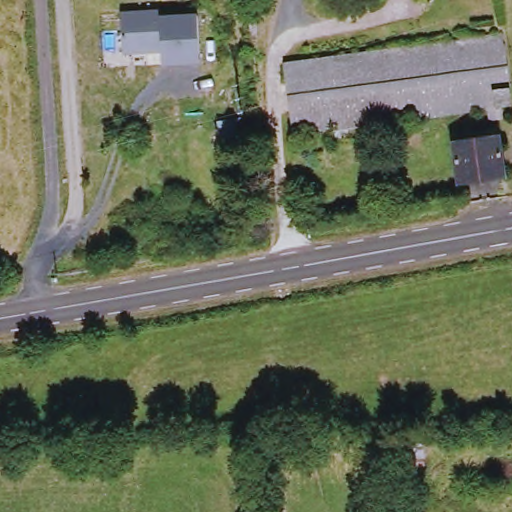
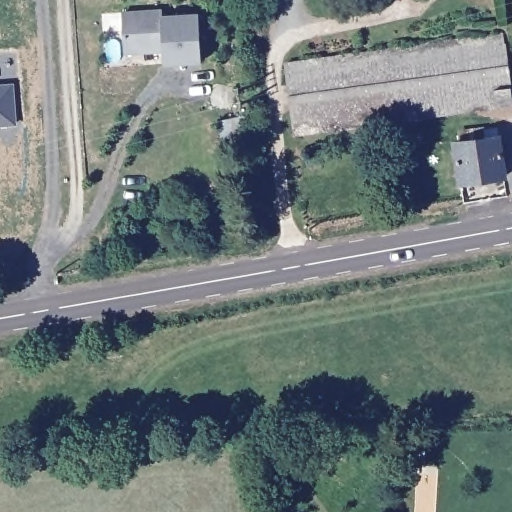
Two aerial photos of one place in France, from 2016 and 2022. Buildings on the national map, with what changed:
unchanged [(124,15),(163,12),(164,19),(200,16),(203,63),(166,65),(165,52),(126,55),(124,15)]
unchanged [(491,120),(490,110),(414,120),(294,136),(284,65),(504,35),(512,99),(512,107),(502,108),(504,118),(491,120)]
new [(20,125),(0,127),(0,89),(17,88),(20,125)]
unchanged [(460,190),(455,150),(461,150),(460,138),(485,135),(486,145),(499,144),(505,183),(460,190)]

